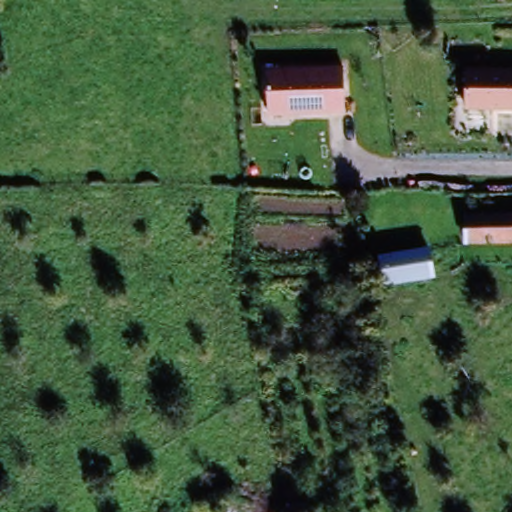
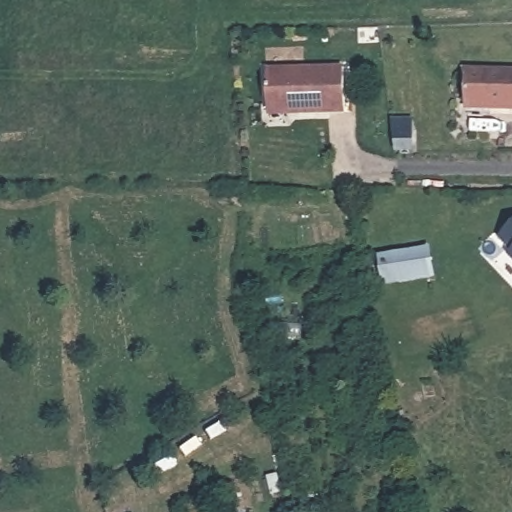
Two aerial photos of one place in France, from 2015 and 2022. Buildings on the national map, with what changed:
unchanged [(344,66),(346,115),(269,118),(267,69),(344,66)]
unchanged [(462,71),(512,71),(512,110),(463,110),(462,71)]
unchanged [(464,247),(463,221),(512,222),(512,249),(464,247)]
unchanged [(431,270),(433,286),(388,293),(384,265),(429,258),(431,270)]

